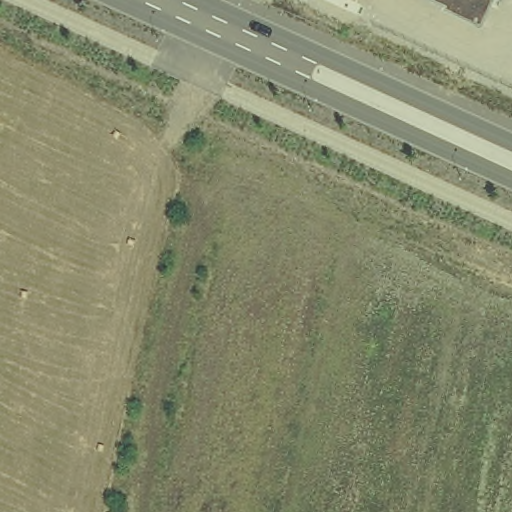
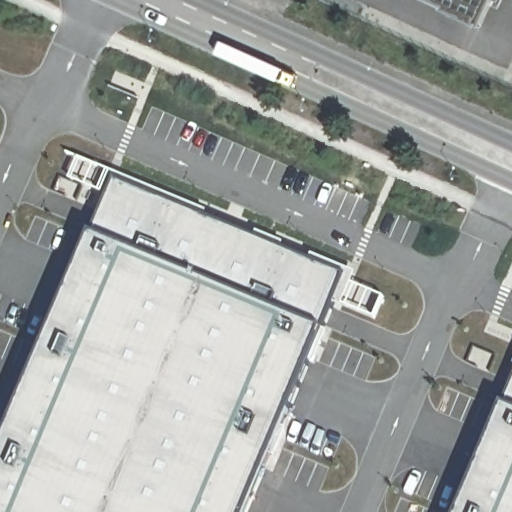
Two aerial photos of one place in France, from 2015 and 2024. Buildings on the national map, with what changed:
unchanged [(500,4),(492,0),(481,28),(422,0),(502,0),(500,4)]
new [(112,512),(0,512),(0,452),(115,177),(231,226),(112,512)]
new [(248,512),(112,512),(231,226),(347,275),(248,512)]
new [(512,512),(459,512),(512,385),(512,512)]

